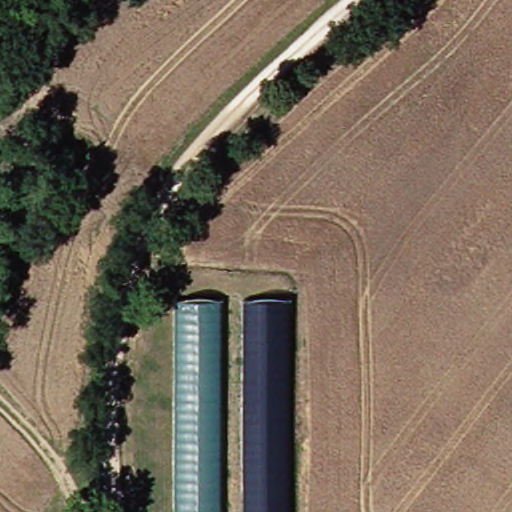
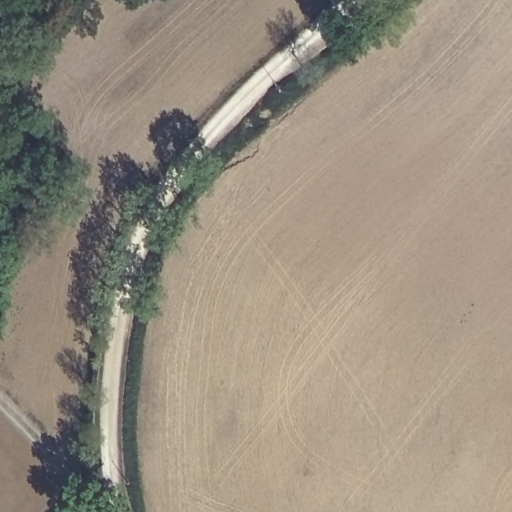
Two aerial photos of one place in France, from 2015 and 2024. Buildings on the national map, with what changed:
demolished [(290,512),(178,512),(180,297),(291,298),(290,512)]

